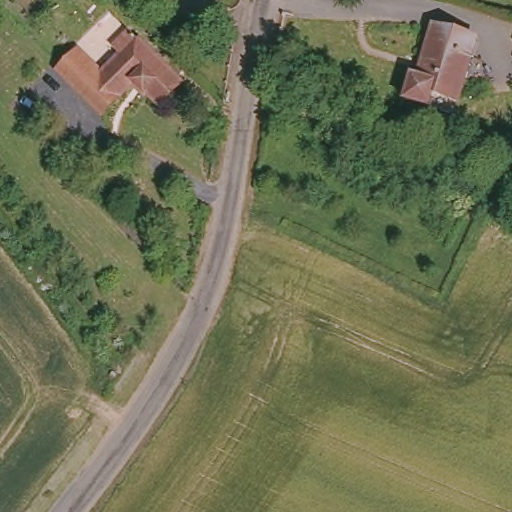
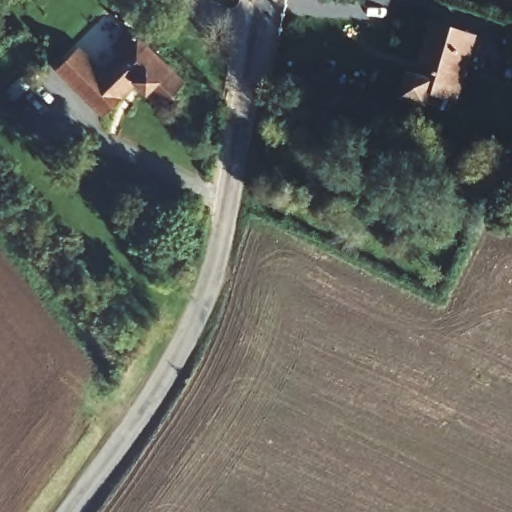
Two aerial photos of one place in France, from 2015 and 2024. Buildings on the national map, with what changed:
unchanged [(441,103),(417,96),(413,109),(388,101),(396,77),(404,80),(420,28),(461,41),(441,103)]
unchanged [(79,47),(100,71),(117,57),(110,48),(128,30),(138,40),(187,87),(165,114),(147,97),(142,101),(127,87),(102,120),(53,73),(79,47)]

